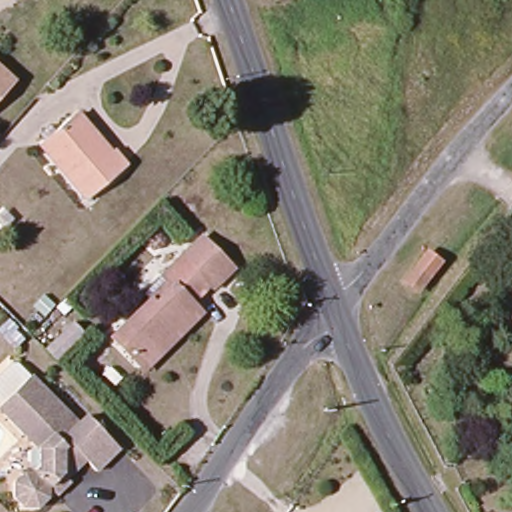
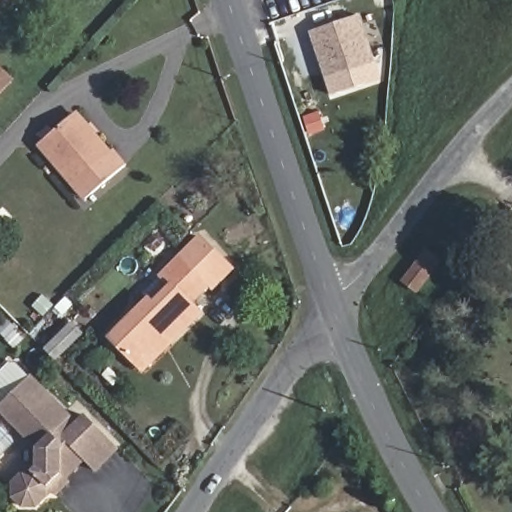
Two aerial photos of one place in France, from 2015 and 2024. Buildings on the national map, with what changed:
new [(326,80),(309,33),(361,15),(377,62),(326,80)]
unchanged [(0,95),(0,76),(9,84),(0,95)]
unchanged [(37,147),(64,123),(75,113),(110,154),(123,170),(84,202),(37,147)]
unchanged [(135,367),(108,339),(144,303),(164,285),(157,277),(200,236),(230,269),(207,294),(204,291),(187,309),(196,317),(167,346),(140,372),(135,367)]
unchanged [(415,295),(400,284),(423,256),(437,267),(415,295)]
unchanged [(52,363),(28,341),(35,333),(48,344),(70,327),(80,337),(52,363)]
unchanged [(74,423),(85,411),(117,444),(94,467),(82,455),(63,474),(69,480),(55,493),(51,489),(35,504),(21,504),(12,493),(11,480),(22,470),(29,471),(35,465),(35,446),(0,412),(0,368),(10,358),(74,423)]

